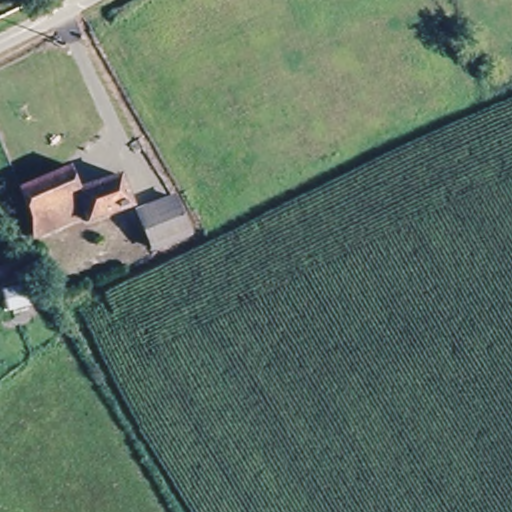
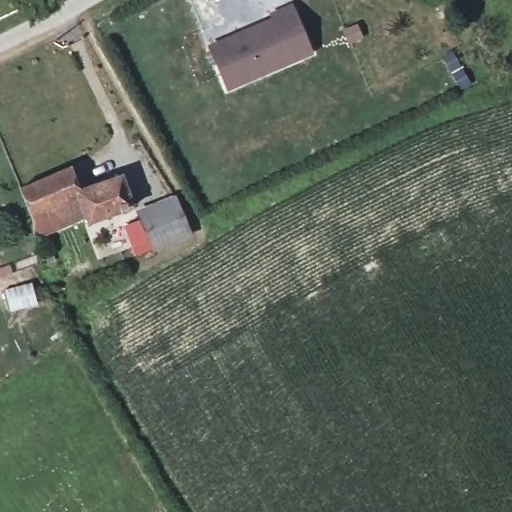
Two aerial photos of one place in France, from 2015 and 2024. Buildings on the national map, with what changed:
new [(226,93),(205,45),(270,19),(268,12),(290,4),(312,54),(226,93)]
unchanged [(28,224),(15,190),(66,171),(78,195),(117,180),(129,212),(86,229),(82,221),(27,242),(28,224)]
unchanged [(151,252),(137,216),(173,201),(186,240),(151,252)]
unchanged [(0,298),(0,291),(30,280),(40,307),(4,318),(0,298)]

